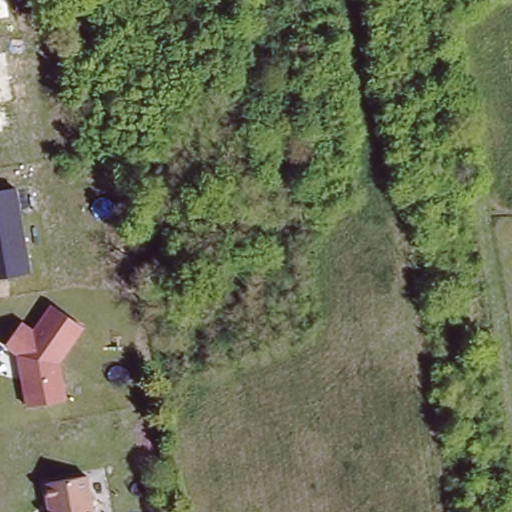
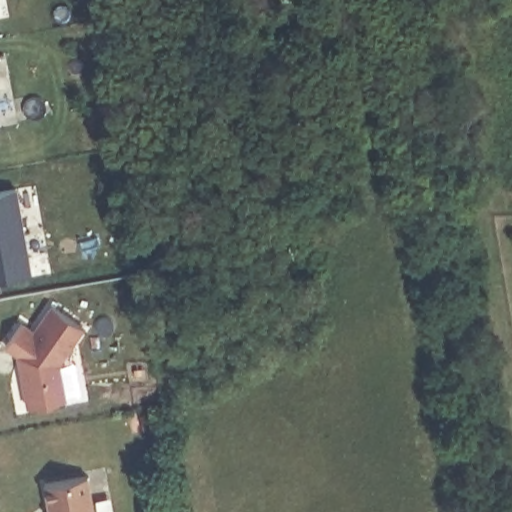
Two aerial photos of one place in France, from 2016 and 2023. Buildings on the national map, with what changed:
unchanged [(16,190),(31,272),(0,276),(0,193),(16,190)]
unchanged [(85,330),(60,360),(67,400),(29,409),(18,356),(6,346),(23,322),(34,329),(53,309),(85,330)]
unchanged [(92,512),(47,512),(43,481),(86,474),(92,512)]

